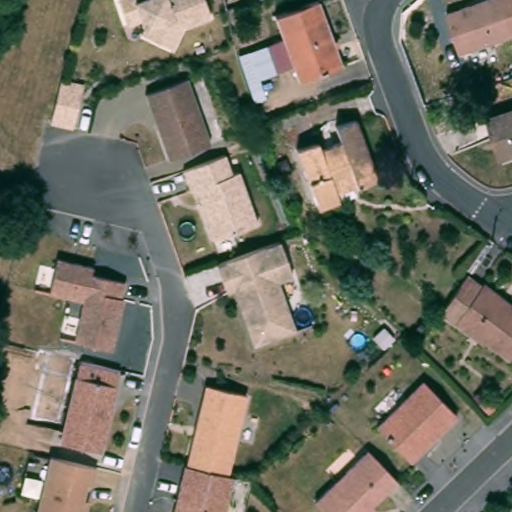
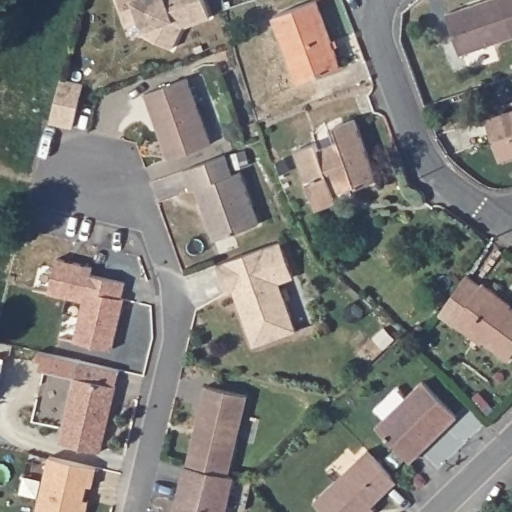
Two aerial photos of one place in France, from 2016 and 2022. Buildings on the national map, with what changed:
unchanged [(147,28),(143,17),(129,22),(121,0),(207,0),(212,14),(191,22),(188,21),(177,46),(156,37),(146,32),(147,28)]
unchanged [(312,0),(336,64),(295,81),(288,65),(278,38),(269,16),(312,0)]
unchanged [(512,37),(460,55),(446,15),(487,0),(512,0),(512,37)]
unchanged [(278,38),(288,65),(256,77),(262,95),(254,98),(237,52),(278,38)]
unchanged [(85,82),(75,126),(53,122),(63,77),(85,82)]
unchanged [(189,77),(209,143),(167,156),(147,90),(189,77)]
unchanged [(343,201),(323,210),(296,150),(318,140),(321,147),(340,138),(334,124),(353,116),(358,127),(360,140),(365,147),(379,177),(360,186),(359,183),(339,192),(343,201)]
unchanged [(512,162),(501,166),(486,126),(512,117),(512,162)]
unchanged [(241,169),(261,222),(217,237),(198,187),(193,189),(185,167),(227,152),(234,172),(241,169)]
unchanged [(257,341),(237,286),(230,288),(227,280),(220,261),(283,237),(296,273),(282,278),(299,326),(257,341)]
unchanged [(94,272),(128,280),(125,296),(127,296),(115,347),(78,338),(87,298),(53,291),(61,256),(96,263),(94,272)]
unchanged [(481,287),(483,285),(498,296),(496,300),(512,312),(512,355),(507,362),(456,322),(452,328),(435,315),(466,276),(481,287)]
unchanged [(124,367),(105,449),(65,440),(84,358),(124,367)]
unchanged [(426,379),(459,413),(411,458),(378,423),(426,379)]
unchanged [(210,382),(251,391),(233,470),(192,461),(199,432),(201,422),(210,382)]
unchanged [(328,512),(315,499),(368,447),(382,462),(398,477),(372,502),(376,506),(370,512),(328,512)]
unchanged [(86,512),(37,512),(50,453),(97,463),(92,483),(87,482),(84,496),(89,497),(87,505),(86,512)]
unchanged [(239,472),(230,512),(178,512),(181,497),(190,461),(192,461),(233,470),(239,472)]

